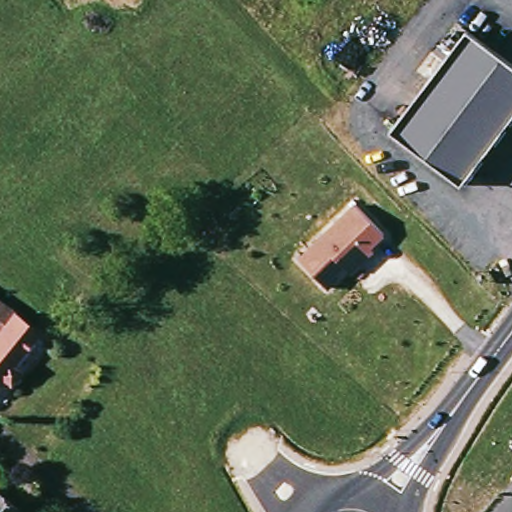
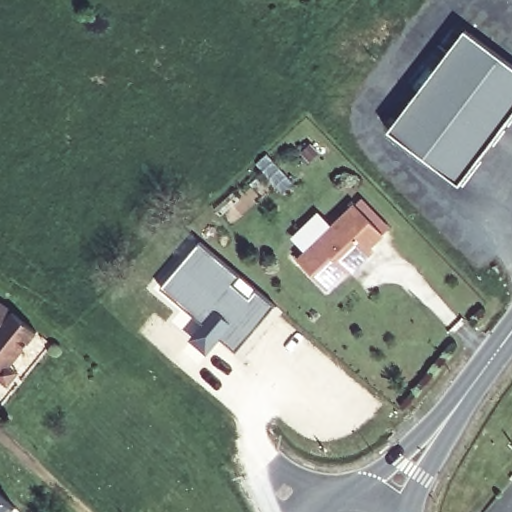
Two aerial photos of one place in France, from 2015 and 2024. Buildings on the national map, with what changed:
unchanged [(394,134),(468,30),(512,62),(512,121),(467,185),(394,134)]
unchanged [(352,207),(382,236),(371,249),(374,252),(352,275),(348,271),(328,289),(297,260),(352,207)]
new [(274,306),(237,351),(222,338),(208,355),(191,340),(204,322),(163,287),(200,244),(274,306)]
unchanged [(16,308),(18,310),(41,331),(0,376),(0,327),(6,320),(0,317),(0,298),(16,308)]
unchanged [(14,504),(7,512),(0,512),(0,486),(14,504)]

